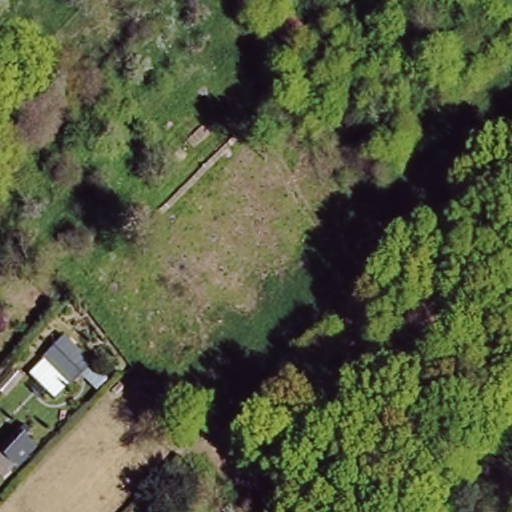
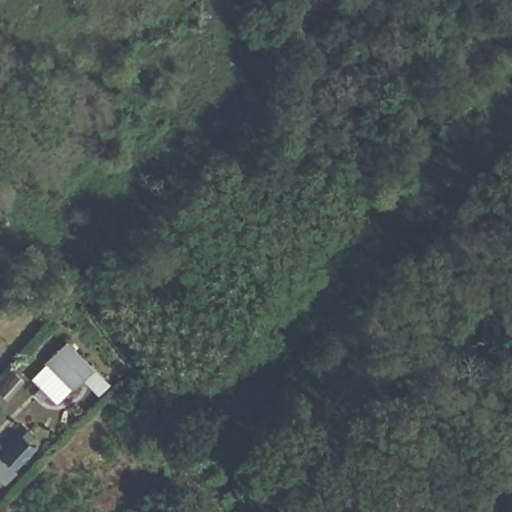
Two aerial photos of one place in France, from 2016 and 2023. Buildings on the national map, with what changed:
unchanged [(82,351),(70,363),(82,374),(72,385),(47,361),(68,338),(82,351)]
unchanged [(34,430),(27,438),(36,446),(18,466),(0,450),(0,449),(25,422),(34,430)]

